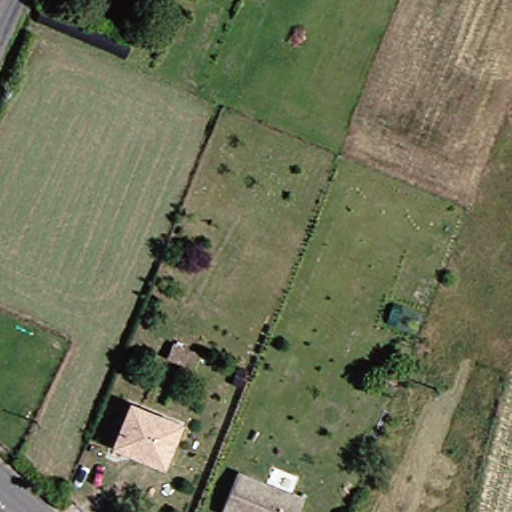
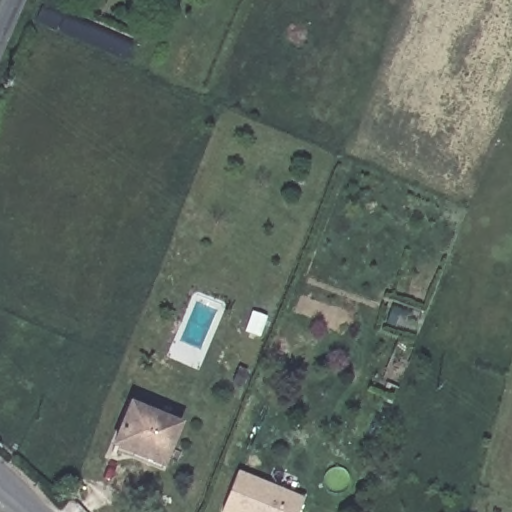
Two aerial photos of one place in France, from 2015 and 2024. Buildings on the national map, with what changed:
unchanged [(44,0),(144,41),(136,63),(34,20),(43,0),(44,0)]
unchanged [(193,362),(188,376),(164,366),(169,354),(193,362)]
unchanged [(137,457),(119,450),(136,407),(186,425),(174,460),(170,470),(137,457)]
unchanged [(298,501),(294,512),(217,512),(232,473),(298,501)]

